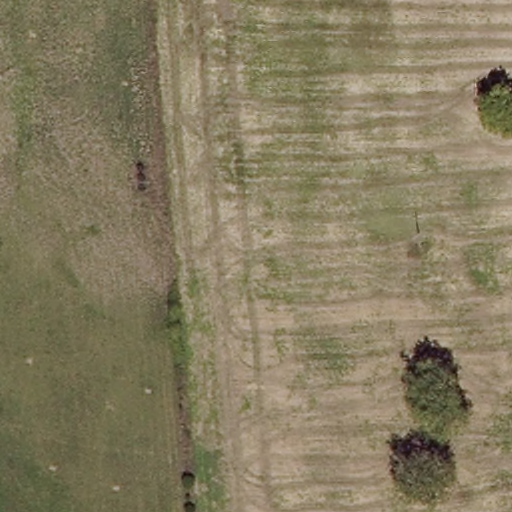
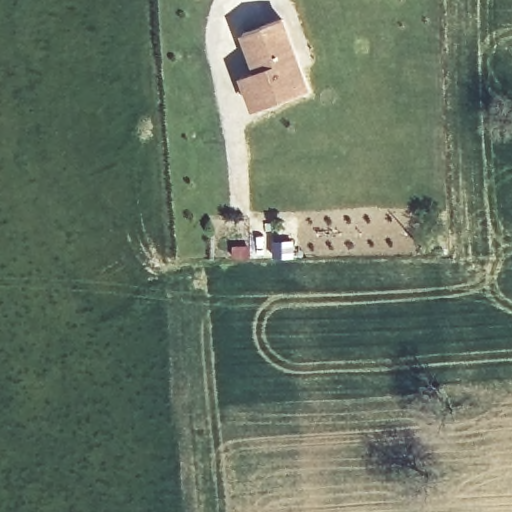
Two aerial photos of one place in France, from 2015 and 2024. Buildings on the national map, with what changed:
new [(285,17),(310,89),(251,112),(239,77),(254,71),(240,35),(285,17)]

